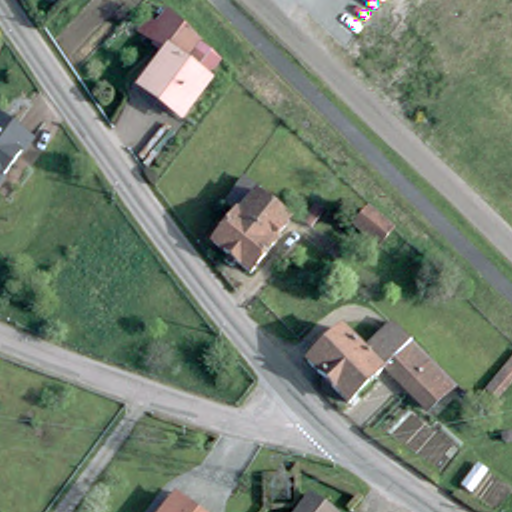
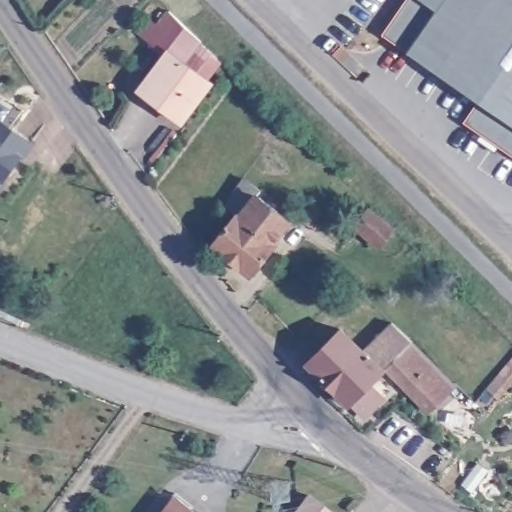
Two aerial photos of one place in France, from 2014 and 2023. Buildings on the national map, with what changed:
new [(479,100),(407,51),(382,35),(407,0),(512,0),(512,155),(463,123),(479,100)]
unchanged [(163,54),(157,50),(142,40),(135,34),(143,23),(152,29),(167,12),(175,20),(177,22),(197,42),(200,45),(217,62),(203,83),(178,118),(138,89),(163,54)]
unchanged [(28,141),(0,177),(0,121),(28,141)]
unchanged [(272,244),(248,273),(210,244),(235,215),(219,205),(238,177),(257,190),(255,194),(288,220),(270,243),(272,244)]
unchanged [(372,217),(378,224),(389,234),(375,249),(352,226),(367,212),(372,217)]
unchanged [(405,389),(385,369),(347,405),(306,363),(339,331),(343,335),(348,331),(367,349),(393,323),(413,340),(455,385),(430,413),(405,389)]
unchanged [(487,378),(512,352),(512,378),(502,390),(487,378)]
unchanged [(291,512),(307,494),(330,512),(291,512)]
unchanged [(160,512),(171,498),(189,512),(160,512)]

